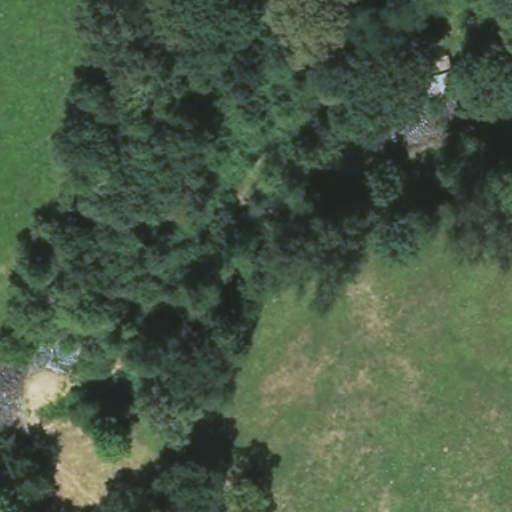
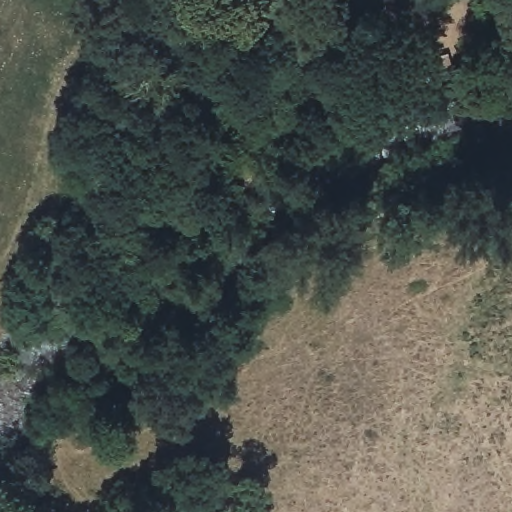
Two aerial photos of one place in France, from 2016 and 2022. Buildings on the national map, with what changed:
unchanged [(419,67),(449,57),(457,82),(428,92),(419,67)]

